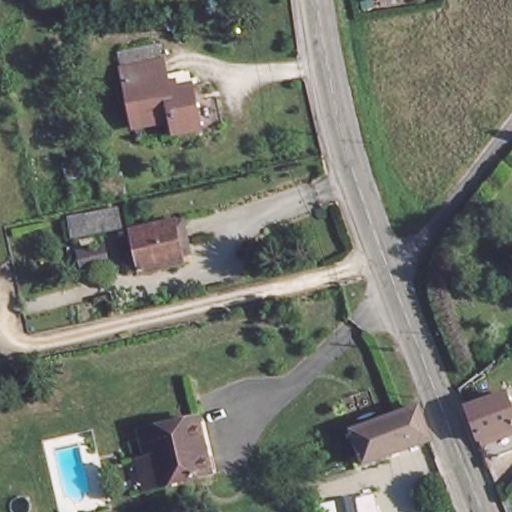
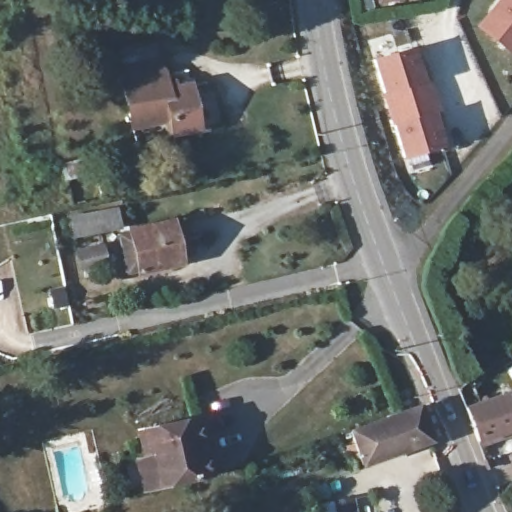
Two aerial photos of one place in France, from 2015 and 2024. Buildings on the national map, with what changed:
new [(376,6),(375,0),(414,0),(376,6)]
new [(477,26),(499,0),(512,0),(512,58),(477,26)]
unchanged [(156,41),(164,91),(189,87),(196,130),(172,135),(169,116),(128,122),(117,50),(156,41)]
new [(416,50),(420,65),(424,63),(445,129),(439,130),(445,150),(403,162),(373,60),(416,50)]
unchanged [(79,215),(107,209),(111,227),(82,234),(79,215)]
unchanged [(125,234),(135,231),(134,225),(171,216),(181,261),(143,269),(141,260),(130,262),(125,234)]
unchanged [(500,387),(512,419),(512,422),(474,437),(461,401),(500,387)]
unchanged [(418,405),(430,442),(362,461),(350,428),(418,405)]
unchanged [(164,480),(154,483),(151,470),(147,447),(141,422),(201,408),(213,459),(215,470),(164,480)]
new [(368,512),(325,512),(323,505),(365,495),(368,512)]

